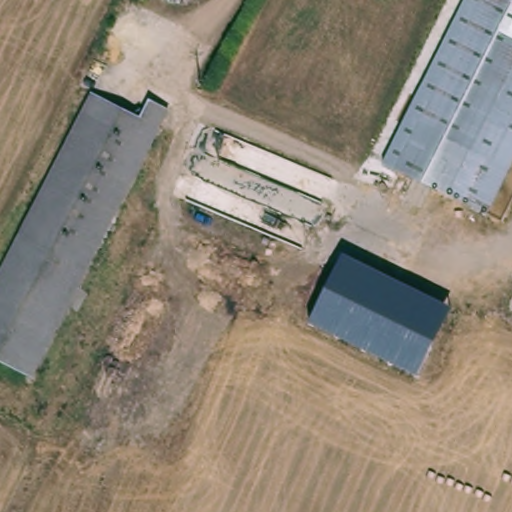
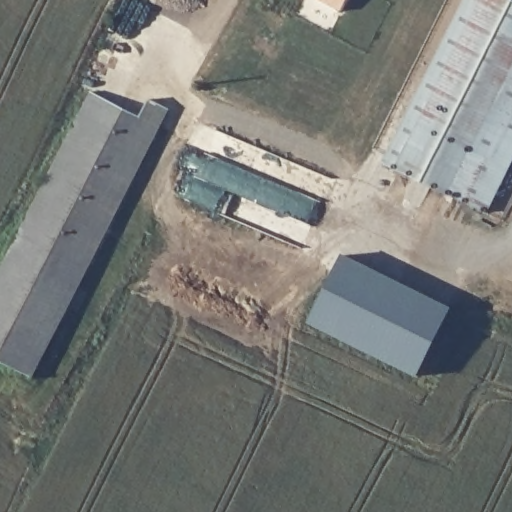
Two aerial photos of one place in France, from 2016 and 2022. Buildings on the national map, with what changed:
new [(320,0),(346,0),(340,11),(320,0)]
unchanged [(467,0),(484,0),(421,126),(472,151),(450,197),(386,167),(467,0)]
unchanged [(450,197),(472,151),(421,126),(484,0),(512,0),(512,165),(486,216),(450,197)]
unchanged [(144,125),(155,105),(174,114),(30,381),(0,365),(0,273),(95,97),(144,125)]
unchanged [(342,255),(452,309),(417,375),(310,324),(342,255)]

